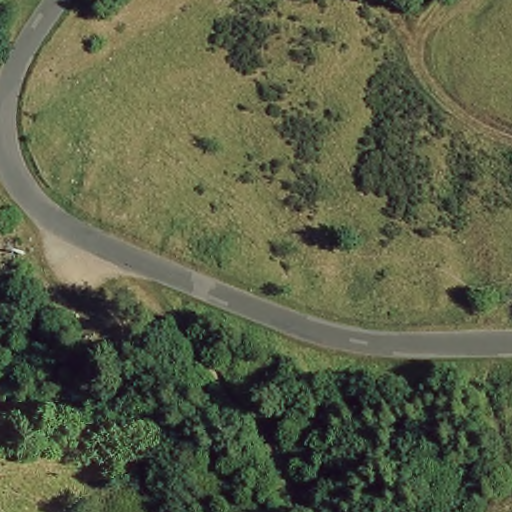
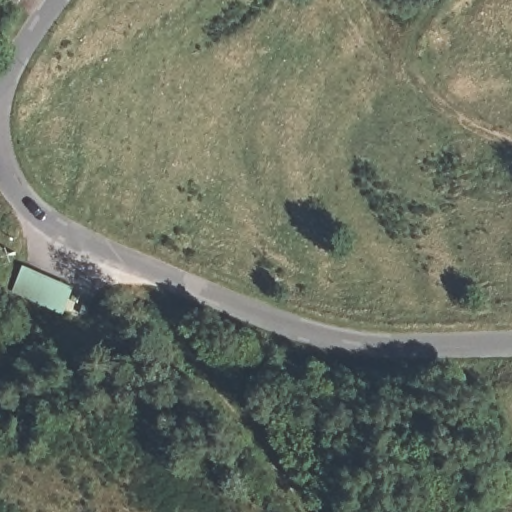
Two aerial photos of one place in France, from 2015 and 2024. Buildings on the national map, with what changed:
new [(74,287),(63,315),(11,292),(23,265),(74,287)]

